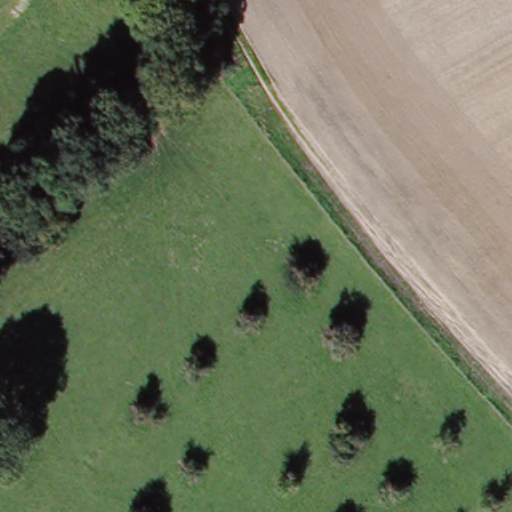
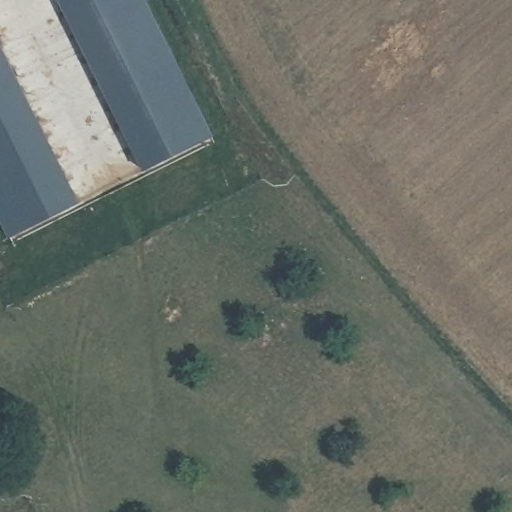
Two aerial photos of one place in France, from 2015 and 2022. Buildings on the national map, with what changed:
new [(145,0),(213,135),(145,172),(59,0),(145,0)]
new [(80,203),(8,236),(0,219),(0,45),(80,203)]

